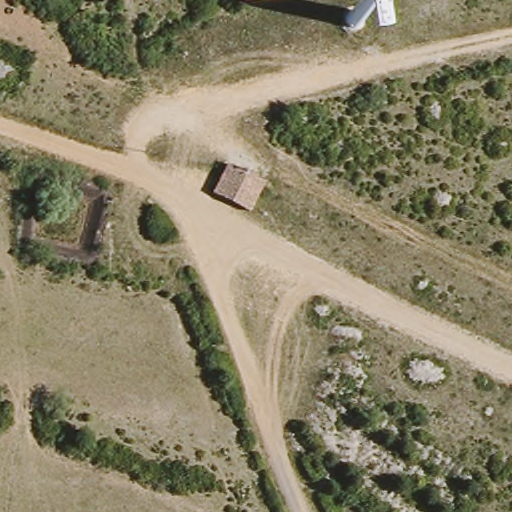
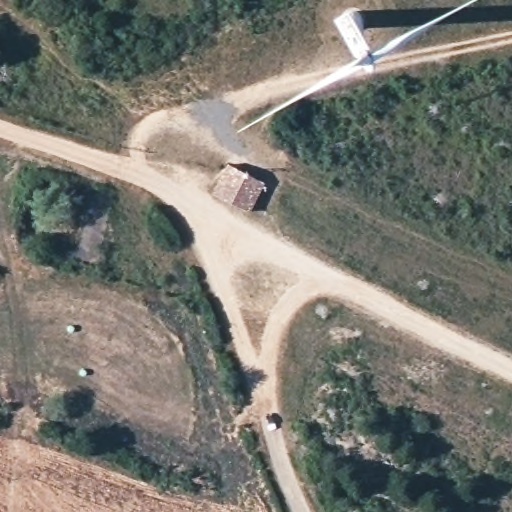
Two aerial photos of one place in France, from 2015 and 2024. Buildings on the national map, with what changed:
unchanged [(227,164),(265,182),(250,214),(208,197),(227,164)]

